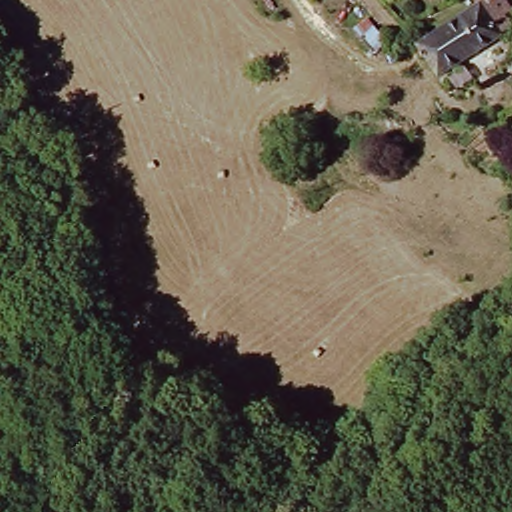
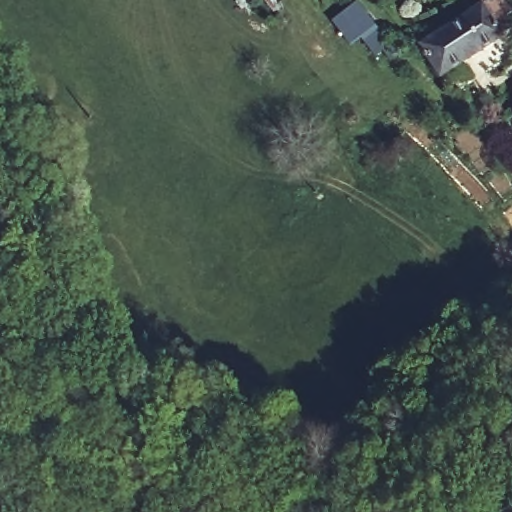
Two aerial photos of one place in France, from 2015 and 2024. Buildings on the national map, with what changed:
unchanged [(512,32),(512,35),(436,82),(415,49),(478,9),(493,0),(507,0),(512,9),(512,17),(506,22),(512,32)]
unchanged [(478,9),(472,0),(493,0),(478,9)]
new [(399,55),(391,62),(383,52),(376,57),(361,38),(351,46),(333,22),(358,1),(399,55)]

